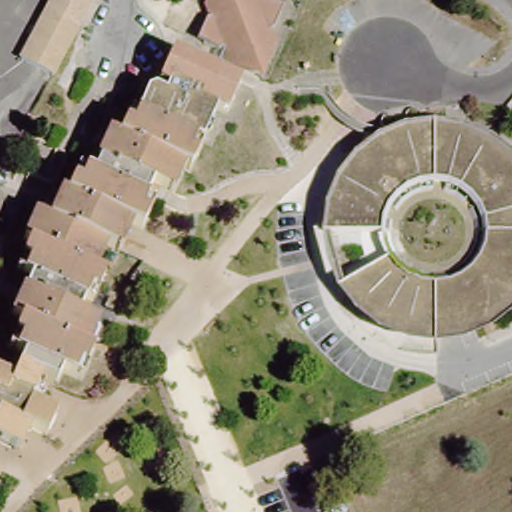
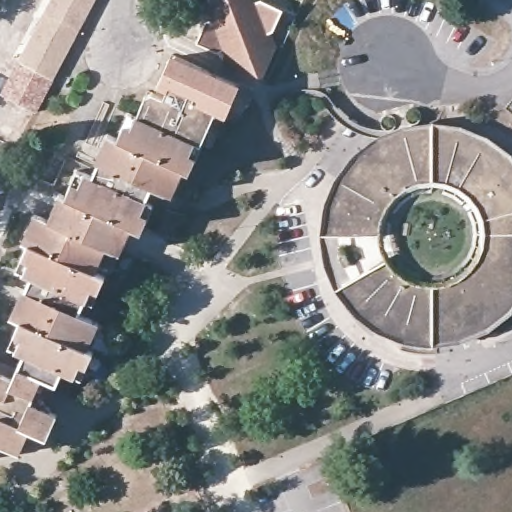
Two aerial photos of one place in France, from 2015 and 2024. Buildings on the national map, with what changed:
unchanged [(96,0),(58,74),(25,57),(54,0),(96,0)]
unchanged [(222,50),(217,53),(216,52),(196,43),(206,20),(208,20),(211,19),(214,9),(238,0),(253,0),(256,1),(259,0),(283,9),(273,31),(268,32),(265,40),(274,44),(260,78),(225,63),(230,54),(222,50)]
unchanged [(238,0),(214,9),(211,19),(208,20),(201,9),(205,0),(238,0)]
unchanged [(253,0),(259,0),(256,1),(253,0)]
unchanged [(25,354),(16,351),(9,348),(15,335),(21,320),(10,315),(16,302),(22,289),(25,290),(31,277),(23,273),(16,270),(22,258),(28,243),(22,240),(28,228),(34,214),(40,218),(48,221),(60,194),(65,197),(71,183),(77,169),(85,172),(93,175),(99,164),(95,162),(101,149),(108,135),(117,139),(124,125),(131,112),(137,114),(148,90),(157,94),(160,88),(157,86),(172,54),(208,69),(220,75),(240,84),(225,117),(215,112),(201,143),(196,156),(189,172),(184,169),(177,183),(172,195),(165,193),(159,190),(154,203),(148,215),(141,230),(132,226),(120,253),(106,247),(101,259),(95,273),(104,277),(98,291),(92,304),(86,317),(93,320),(99,323),(94,335),(88,349),(92,352),(86,366),(81,379),(75,377),(61,371),(56,383),(42,377),(33,395),(31,403),(57,414),(46,437),(29,429),(19,452),(0,443),(0,374),(14,379),(20,368),(25,354)]
new [(58,74),(39,111),(6,94),(25,57),(58,74)]
unchanged [(385,329),(364,314),(347,291),(335,265),(333,238),(336,211),(346,185),(363,164),(384,148),(410,137),(437,134),(464,137),(490,148),(512,164),(512,165),(512,313),(490,329),(465,339),(438,344),(410,340),(385,329)]

